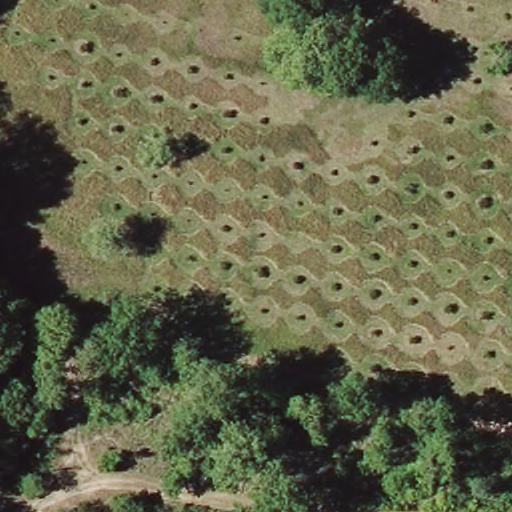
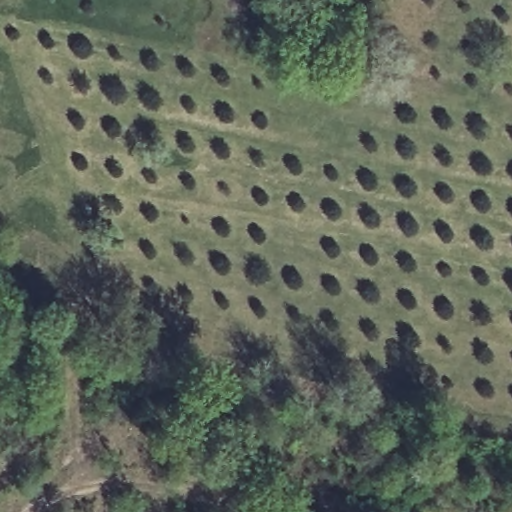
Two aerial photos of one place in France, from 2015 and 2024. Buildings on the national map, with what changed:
[]

